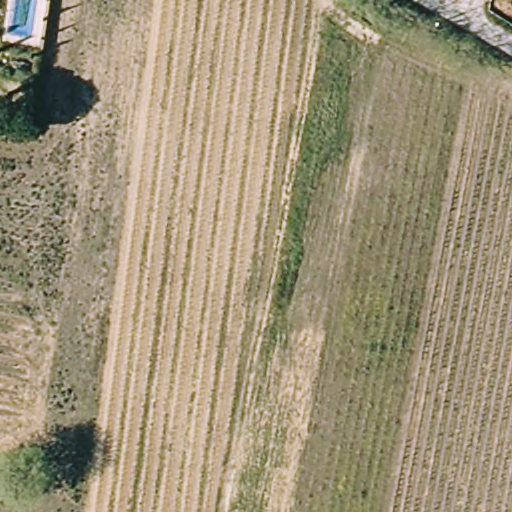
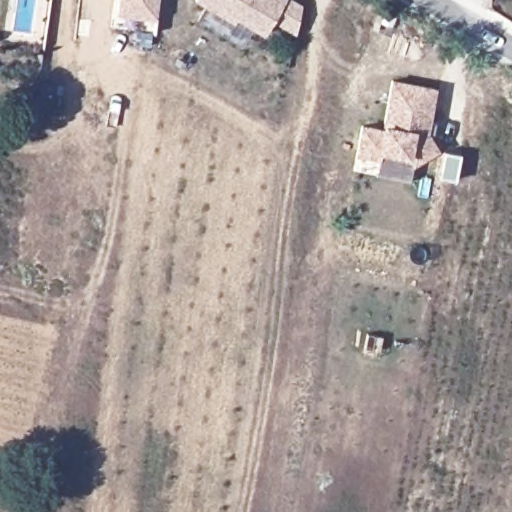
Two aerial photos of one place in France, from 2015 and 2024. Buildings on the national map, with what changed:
new [(156,19),(117,14),(118,0),(158,0),(156,19)]
new [(294,35),(272,22),(263,37),(235,20),(232,24),(193,0),(289,0),(301,7),(294,35)]
new [(363,130),(385,133),(385,128),(392,84),(435,91),(427,135),(437,152),(414,167),(409,158),(382,153),(380,162),(358,158),(363,130)]

